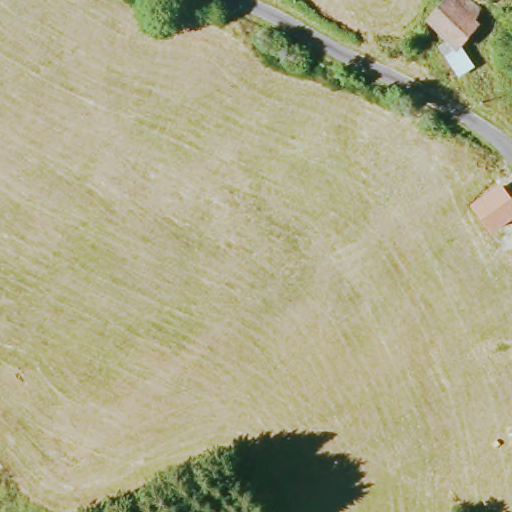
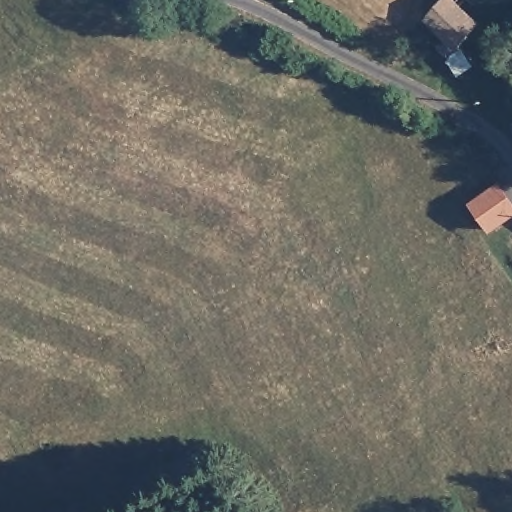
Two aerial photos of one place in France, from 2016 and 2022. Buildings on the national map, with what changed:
unchanged [(435,22),(456,0),(466,0),(472,5),(479,12),(473,17),(481,24),(459,47),(439,29),(435,22)]

